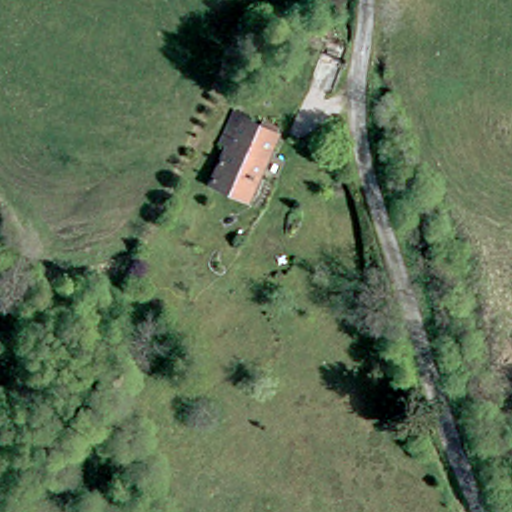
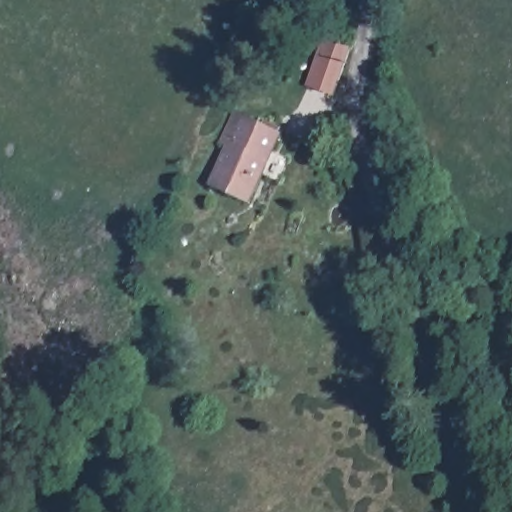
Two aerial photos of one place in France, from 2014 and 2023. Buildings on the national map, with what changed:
new [(325,36),(350,46),(333,95),(306,85),(325,36)]
unchanged [(239,205),(227,197),(207,184),(232,143),(219,137),(240,103),(285,130),(263,166),(239,205)]

